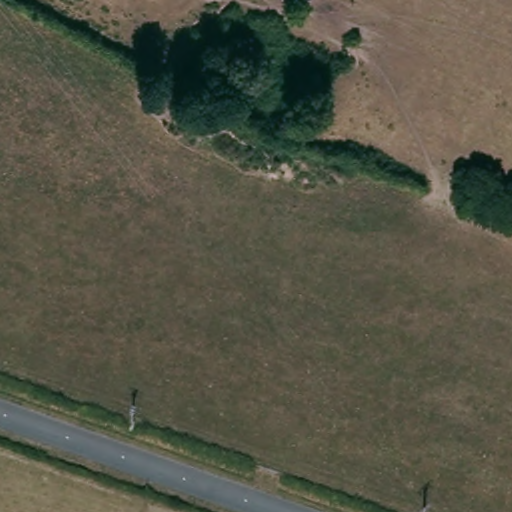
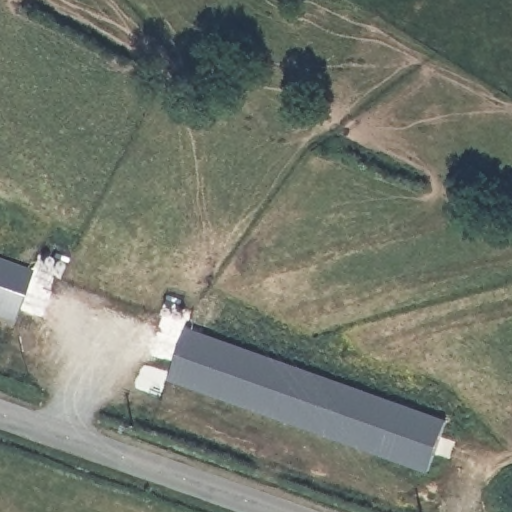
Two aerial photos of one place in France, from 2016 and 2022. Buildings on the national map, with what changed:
new [(0,321),(0,261),(31,271),(12,325),(0,321)]
new [(169,379),(188,327),(447,420),(428,473),(169,379)]

